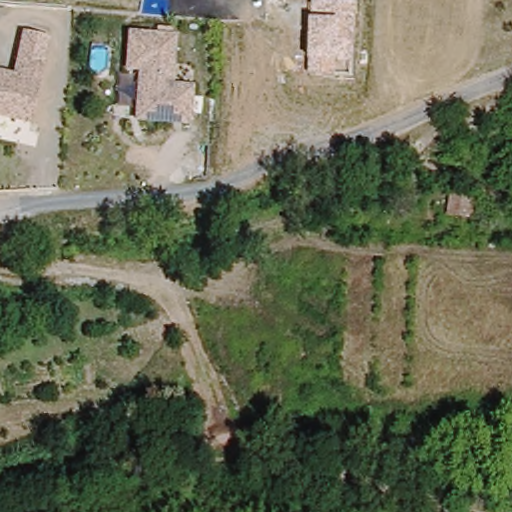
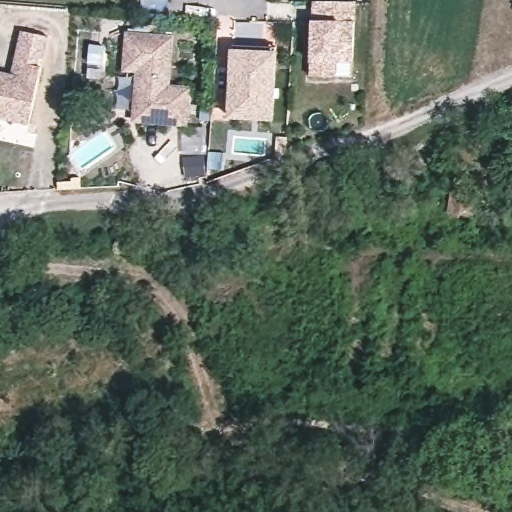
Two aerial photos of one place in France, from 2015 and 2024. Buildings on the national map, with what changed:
unchanged [(356,65),(340,65),(339,78),(313,77),(313,0),(328,0),(356,1),(356,65)]
unchanged [(45,43),(23,128),(0,122),(0,79),(7,80),(18,36),(45,43)]
unchanged [(120,73),(121,36),(166,39),(164,88),(185,89),(183,126),(130,123),(132,73),(120,73)]
new [(227,119),(228,110),(232,47),(250,49),(276,50),(276,56),(271,114),(270,122),(227,119)]
unchanged [(445,193),(466,197),(462,218),(440,213),(445,193)]

